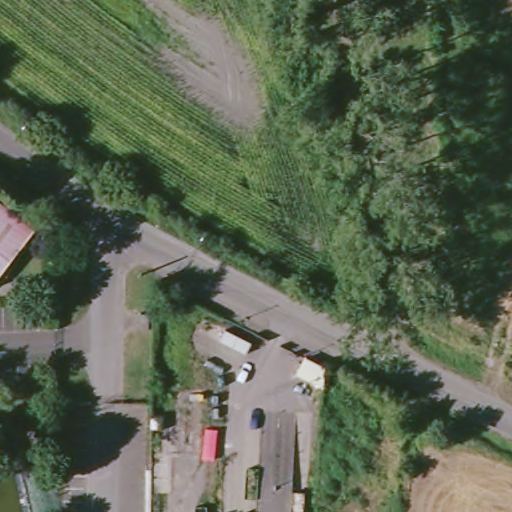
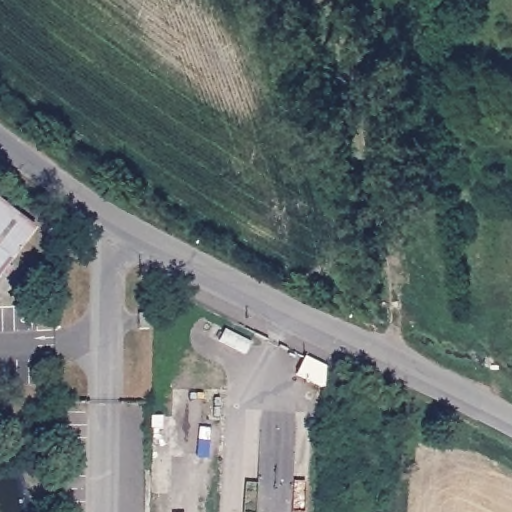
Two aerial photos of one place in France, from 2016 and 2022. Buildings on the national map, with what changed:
unchanged [(0,275),(0,205),(34,231),(0,275)]
unchanged [(138,312),(149,312),(149,328),(139,328),(138,312)]
unchanged [(320,374),(320,393),(292,380),(300,364),(321,366),(320,374)]

